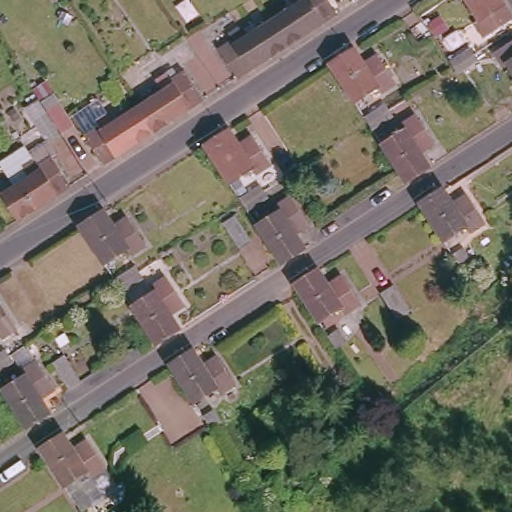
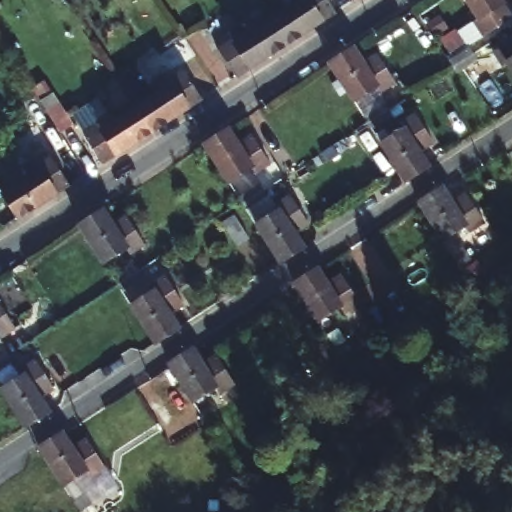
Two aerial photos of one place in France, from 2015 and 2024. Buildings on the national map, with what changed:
unchanged [(286,0),(322,0),(329,11),(286,39),(285,40),(280,43),(264,21),(289,4),(286,0)]
unchanged [(497,0),(506,13),(482,28),(479,30),(469,15),(473,13),(464,0),(497,0)]
unchanged [(242,68),(227,78),(209,51),(224,41),(221,35),(231,29),(237,39),(264,21),(280,43),(242,68)]
unchanged [(512,72),(506,62),(501,64),(493,50),(497,48),(512,38),(512,72)]
unchanged [(326,54),(346,41),(356,55),(369,46),(388,74),(371,84),(369,81),(346,96),(321,58),(326,54)]
unchanged [(476,59),(456,73),(451,66),(448,61),(468,48),(472,53),(476,59)]
unchanged [(163,89),(156,79),(166,71),(170,78),(186,68),(204,96),(203,96),(161,124),(151,130),(135,108),(163,89)]
unchanged [(369,128),(366,123),(361,115),(383,101),(388,108),(391,114),(369,128)]
unchanged [(117,152),(99,163),(81,134),(96,125),(93,119),(102,114),(108,124),(135,108),(151,130),(117,152)]
unchanged [(404,129),(399,123),(414,113),(432,139),(418,148),(428,165),(404,181),(379,144),(404,129)]
unchanged [(221,128),(230,142),(244,133),(263,161),(249,170),(246,165),(221,182),(196,144),(221,128)]
unchanged [(25,208),(11,218),(0,201),(0,192),(21,178),(14,165),(25,159),(29,164),(43,155),(62,184),(25,208)]
unchanged [(462,187),(479,214),(464,224),(461,220),(437,235),(413,198),(438,182),(446,196),(462,187)]
unchanged [(244,209),(241,204),(236,198),(259,183),(264,189),(267,194),(244,209)]
unchanged [(279,209),(276,204),(290,194),(308,222),(293,230),(303,247),(279,263),(254,225),(279,209)]
unchanged [(95,204),(104,217),(118,209),(136,238),(122,247),(119,243),(95,258),(70,220),(95,204)]
unchanged [(451,254),(464,247),(469,257),(458,265),(451,254)]
unchanged [(337,268),(356,297),(341,306),(337,300),(312,317),(288,280),(313,264),(321,278),(337,268)]
unchanged [(119,292),(115,285),(110,279),(131,265),(135,273),(138,279),(119,292)]
unchanged [(153,286),(149,280),(163,272),(181,299),(168,308),(178,324),(153,339),(129,302),(153,286)]
unchanged [(3,321),(0,323),(0,316),(3,321)]
unchanged [(326,337),(339,329),(344,340),(333,347),(326,337)]
unchanged [(211,351),(228,378),(214,387),(211,383),(187,398),(163,362),(188,346),(196,359),(211,351)]
unchanged [(0,369),(0,351),(3,349),(8,356),(11,362),(0,369)]
unchanged [(20,370),(17,366),(31,356),(48,383),(34,392),(43,409),(20,424),(0,393),(0,383),(20,370)]
unchanged [(201,418),(213,411),(219,421),(208,428),(201,418)]
unchanged [(82,429),(99,457),(85,466),(83,462),(58,478),(34,441),(58,426),(67,439),(82,429)]
unchanged [(73,502),(84,494),(90,504),(79,512),(73,502)]

